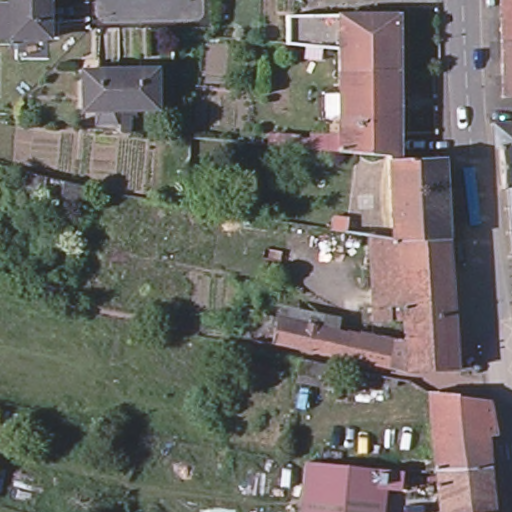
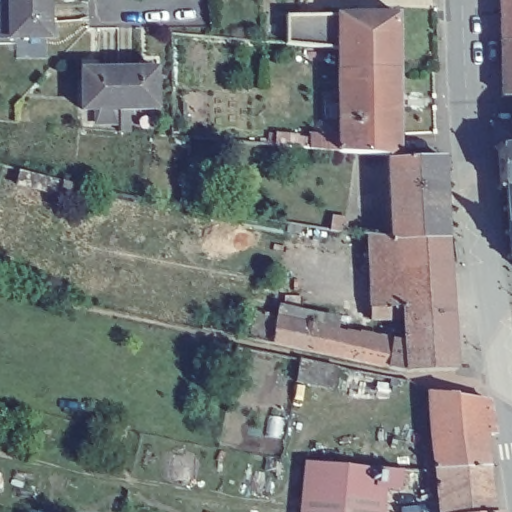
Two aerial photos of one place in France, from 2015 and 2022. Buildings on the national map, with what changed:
unchanged [(0,0),(9,0),(49,0),(49,37),(9,37),(0,37),(0,0)]
unchanged [(504,48),(503,0),(512,0),(512,105),(505,105),(504,48)]
unchanged [(284,45),(284,17),(334,18),(335,50),(284,45)]
unchanged [(334,18),(394,18),(395,73),(335,72),(335,50),(334,18)]
unchanged [(112,72),(112,109),(74,109),(74,72),(112,72)]
unchanged [(112,72),(145,72),(145,109),(112,109),(112,72)]
unchanged [(335,153),(306,150),(306,134),(337,134),(335,72),(395,73),(397,134),(386,134),(386,144),(387,157),(335,153)]
unchanged [(510,195),(507,198),(504,194),(507,191),(505,160),(500,154),(500,137),(497,132),(500,130),(502,134),(512,132),(512,197),(510,195)]
unchanged [(390,239),(390,238),(387,160),(440,160),(446,241),(390,239)]
unchanged [(65,195),(47,191),(20,185),(23,171),(49,178),(68,182),(65,195)]
unchanged [(510,217),(510,213),(512,213),(512,217),(510,217)]
unchanged [(332,219),(349,221),(347,233),(369,235),(370,281),(344,282),(343,252),(290,245),(284,278),(277,276),(287,224),(331,230),(332,219)]
unchanged [(405,373),(404,348),(402,318),(371,320),(370,310),(370,305),(370,281),(369,235),(390,238),(390,239),(446,241),(449,314),(450,316),(452,372),(405,373)]
unchanged [(252,320),(404,348),(405,373),(401,373),(267,343),(246,341),(252,320)]
unchanged [(332,367),(327,389),(292,382),(296,360),(332,367)]
unchanged [(394,379),(392,387),(385,386),(387,378),(394,379)]
unchanged [(455,395),(455,398),(489,401),(494,437),(487,437),(432,428),(429,392),(455,395)]
unchanged [(309,493),(339,496),(342,464),(342,453),(437,462),(432,428),(487,437),(490,469),(493,512),(442,512),(437,469),(427,469),(426,472),(365,466),(364,485),(370,486),(368,512),(307,512),(309,493)]

